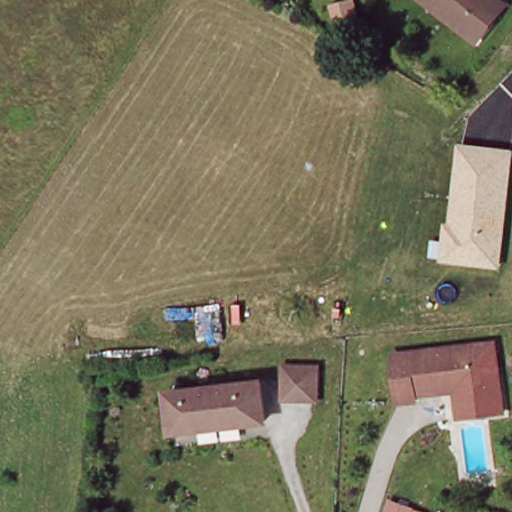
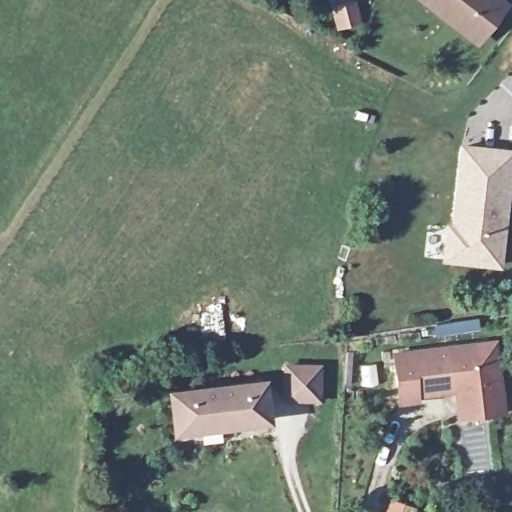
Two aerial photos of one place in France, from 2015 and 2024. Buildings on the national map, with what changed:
unchanged [(502,5),(474,40),(427,3),(423,0),(496,0),(502,5)]
unchanged [(354,17),(335,24),(330,11),(349,5),(354,17)]
unchanged [(512,150),(500,269),(440,263),(444,222),(449,222),(455,143),(512,150)]
unchanged [(413,390),(414,395),(397,397),(391,349),(470,340),(471,345),(475,377),(475,383),(455,385),(413,390)]
unchanged [(498,342),(507,411),(484,413),(482,402),(460,404),(456,394),(420,397),(420,403),(400,407),(397,397),(414,395),(413,390),(455,385),(475,383),(475,377),(471,345),(498,342)]
unchanged [(317,362),(315,394),(284,392),(285,360),(317,362)]
unchanged [(264,419),(172,428),(168,391),(259,380),(264,419)]

